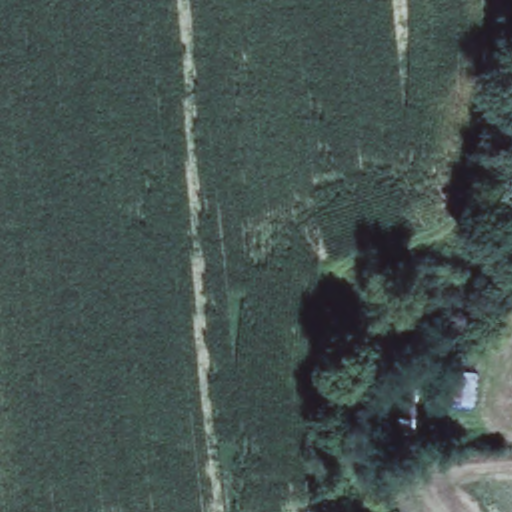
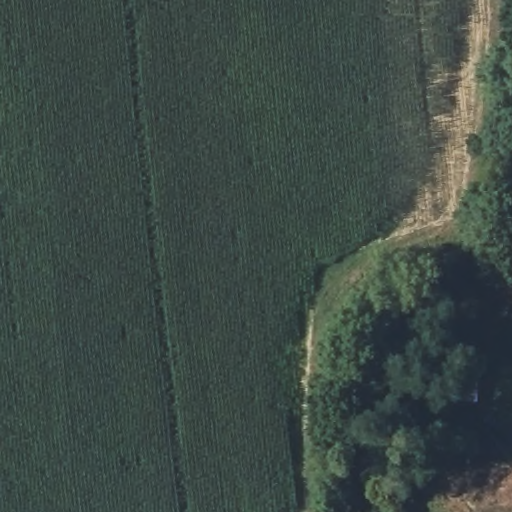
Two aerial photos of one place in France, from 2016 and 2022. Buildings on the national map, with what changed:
unchanged [(402,419),(403,368),(427,369),(427,421),(402,419)]
unchanged [(456,370),(484,371),(482,405),(455,405),(456,370)]

